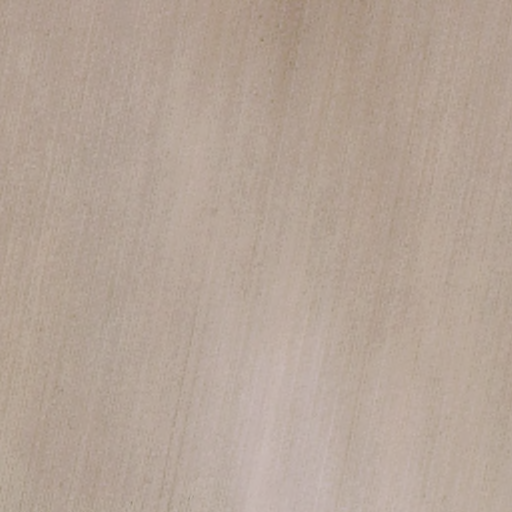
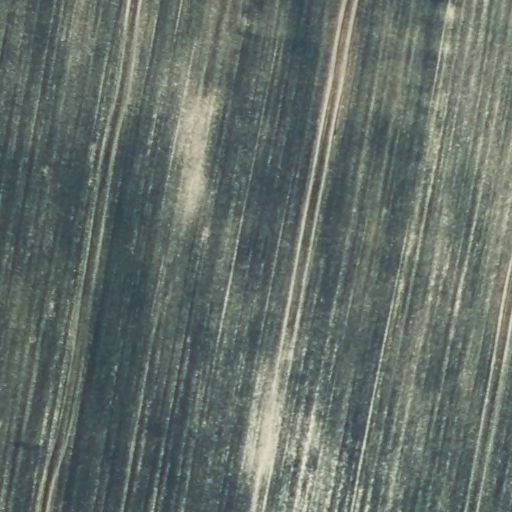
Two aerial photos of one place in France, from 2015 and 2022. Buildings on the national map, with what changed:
[]

